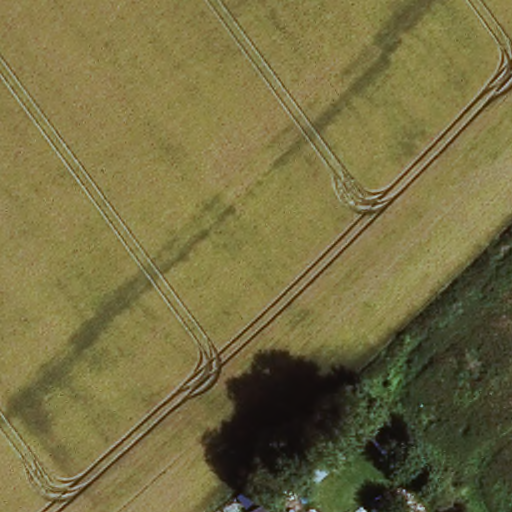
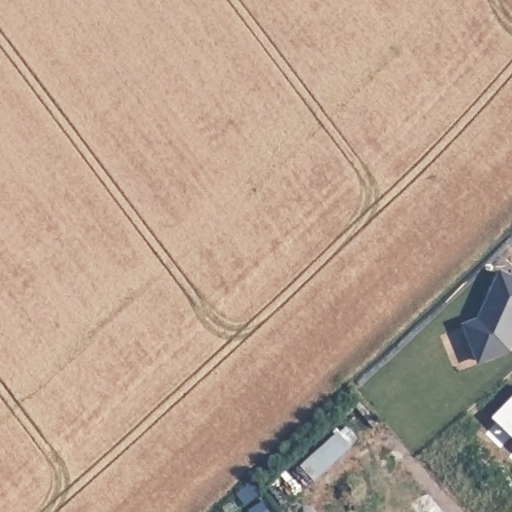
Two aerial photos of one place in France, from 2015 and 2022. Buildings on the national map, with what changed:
new [(480,322),(502,275),(512,280),(512,342),(510,342),(507,348),(510,354),(485,364),(478,361),(465,329),(480,322)]

